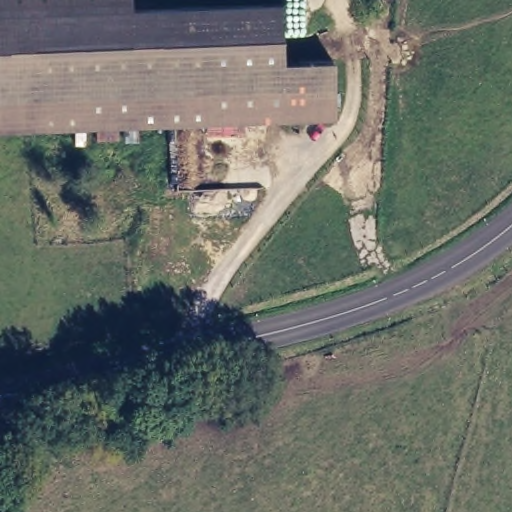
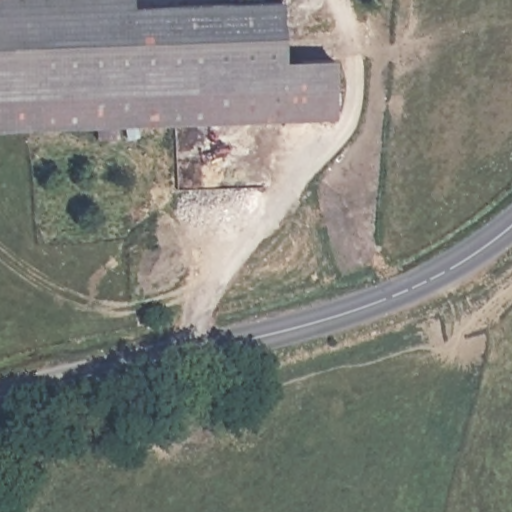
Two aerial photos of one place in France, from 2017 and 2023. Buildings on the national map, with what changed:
unchanged [(336,116),(0,131),(0,0),(285,0),(288,53),(334,53),(336,116)]

